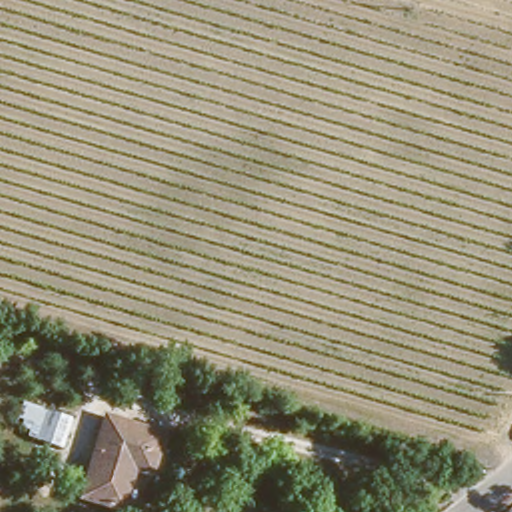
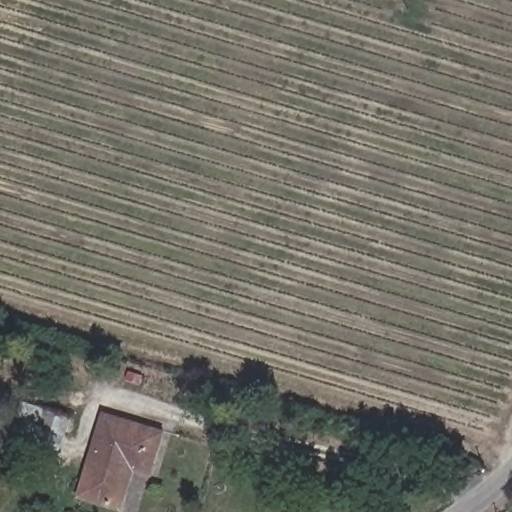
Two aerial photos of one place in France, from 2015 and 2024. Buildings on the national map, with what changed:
unchanged [(43,403),(72,410),(60,445),(30,433),(43,403)]
unchanged [(130,466),(118,505),(79,493),(104,410),(164,428),(150,471),(130,466)]

